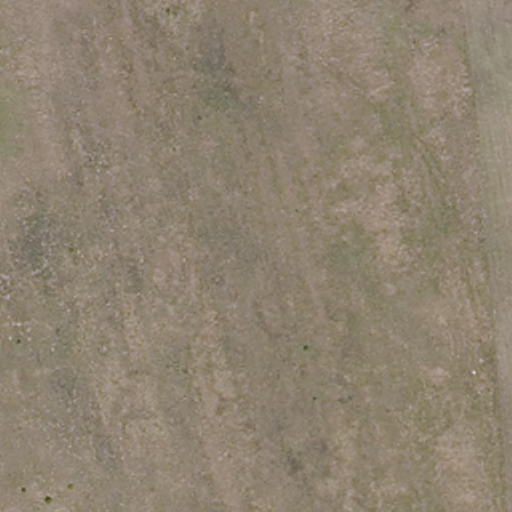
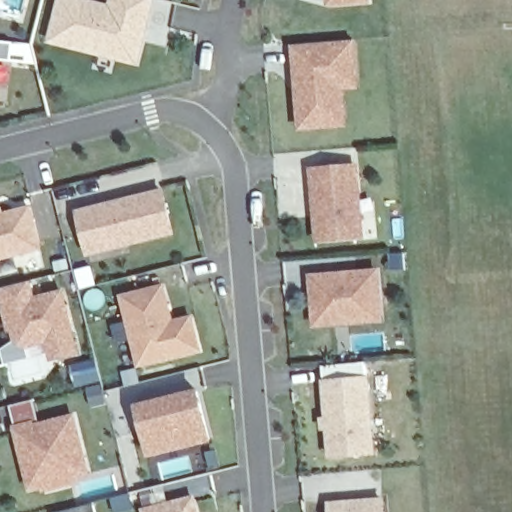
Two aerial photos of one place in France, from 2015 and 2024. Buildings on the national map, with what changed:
new [(58,0),(94,0),(108,4),(109,0),(154,0),(138,62),(47,41),(58,0)]
new [(327,0),(366,0),(327,5),(327,0)]
new [(12,41),(12,60),(0,59),(0,40),(12,41)]
new [(358,87),(343,89),(347,126),(298,130),(291,46),(354,40),(358,87)]
new [(364,237),(316,240),(309,166),(357,164),(364,237)]
new [(86,255),(75,211),(163,188),(174,232),(86,255)]
new [(41,248),(0,259),(0,206),(1,206),(3,212),(30,205),(41,248)]
new [(313,326),(309,274),(378,268),(381,320),(313,326)]
new [(78,352),(50,360),(44,342),(26,347),(13,341),(0,294),(0,287),(31,280),(35,295),(62,289),(78,352)]
new [(173,317),(193,314),(200,347),(137,366),(120,294),(163,282),(173,317)]
new [(375,453),(328,457),(323,380),(368,376),(375,453)]
new [(137,404),(198,387),(209,438),(148,455),(137,404)]
new [(89,474),(29,488),(13,423),(34,418),(35,423),(73,412),(89,474)]
new [(199,512),(143,512),(142,507),(194,494),(199,512)]
new [(327,501),(384,496),(385,512),(328,512),(327,501)]

